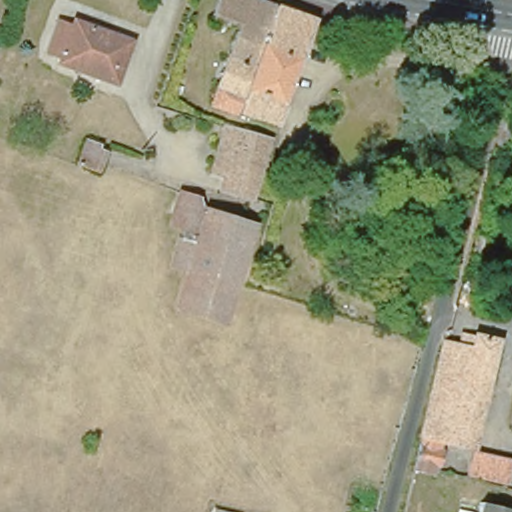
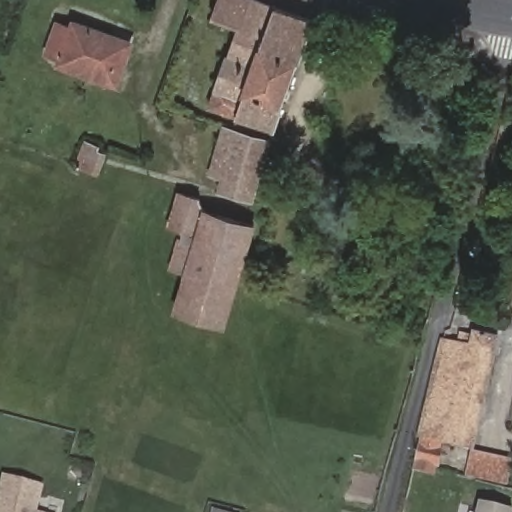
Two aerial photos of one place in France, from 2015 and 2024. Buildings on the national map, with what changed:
unchanged [(314,26),(275,132),(214,113),(242,32),(216,22),(224,0),(244,0),(314,26)]
unchanged [(106,82),(58,64),(60,59),(44,52),(55,23),(71,28),(73,23),(129,42),(120,66),(112,85),(106,82)]
unchanged [(266,142),(264,150),(250,202),(219,191),(222,179),(208,173),(222,128),(266,142)]
unchanged [(71,162),(81,135),(106,147),(97,172),(71,162)]
unchanged [(191,236),(179,230),(188,201),(206,207),(214,217),(262,233),(244,289),(232,330),(184,315),(194,278),(180,272),(184,258),(191,236)]
unchanged [(474,344),(478,332),(501,338),(472,444),(447,438),(439,468),(418,464),(447,338),(474,344)]
unchanged [(474,446),(512,456),(512,479),(510,487),(456,475),(461,455),(472,457),(474,446)]
new [(44,484),(37,510),(43,512),(0,512),(0,485),(2,474),(44,484)]
unchanged [(475,505),(479,492),(510,500),(507,512),(464,512),(466,502),(475,505)]

